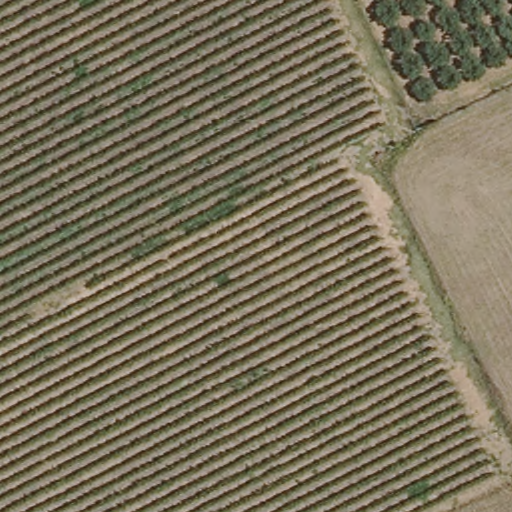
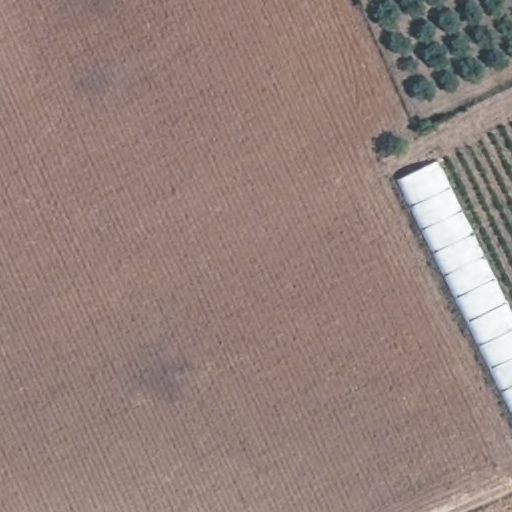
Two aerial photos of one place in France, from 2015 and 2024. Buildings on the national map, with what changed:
new [(438,161),(512,314),(512,415),(395,181),(438,161)]

